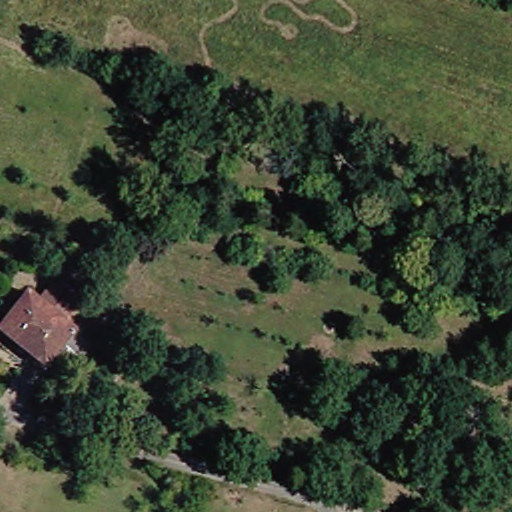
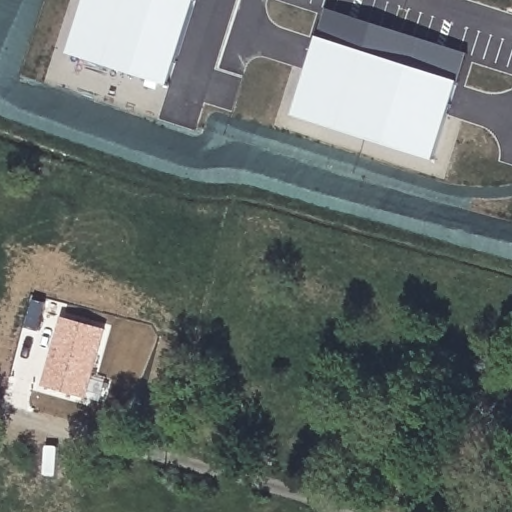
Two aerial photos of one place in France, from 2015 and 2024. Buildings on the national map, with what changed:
new [(169,85),(69,54),(86,0),(197,0),(169,85)]
new [(326,9),(467,54),(458,82),(432,160),(291,115),(316,35),(326,9)]
demolished [(27,292),(39,301),(54,282),(76,300),(61,318),(72,328),(71,330),(89,343),(67,371),(50,358),(48,360),(19,336),(15,341),(0,330),(0,327),(27,292)]
new [(43,385),(63,317),(107,330),(87,398),(43,385)]
demolished [(66,389),(80,396),(70,416),(55,409),(66,389)]

